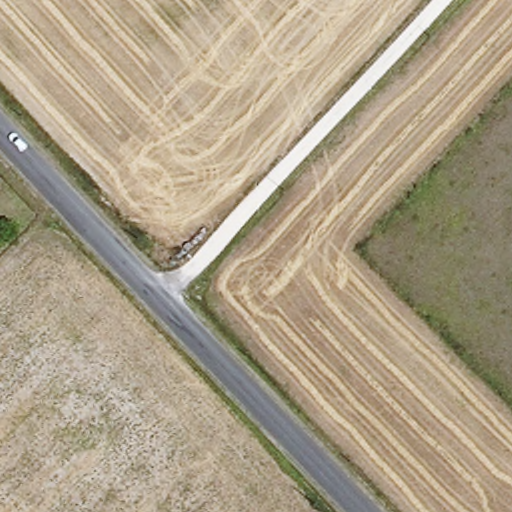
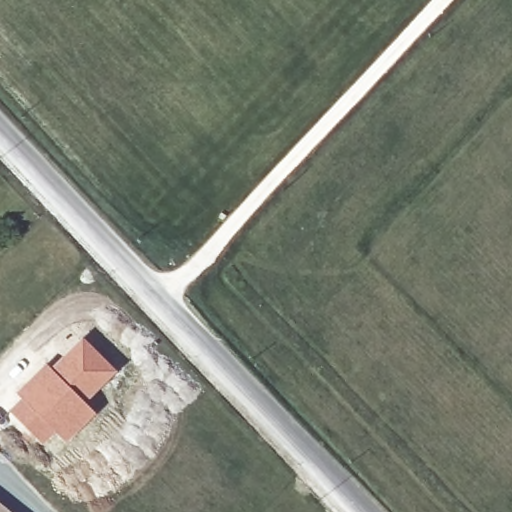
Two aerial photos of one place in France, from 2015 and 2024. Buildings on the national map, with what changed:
new [(82,335),(117,370),(87,401),(50,366),(82,335)]
new [(20,398),(15,391),(46,361),(50,366),(87,401),(97,412),(65,442),(55,432),(42,443),(9,409),(20,398)]
new [(0,512),(0,506),(7,512),(0,512)]

